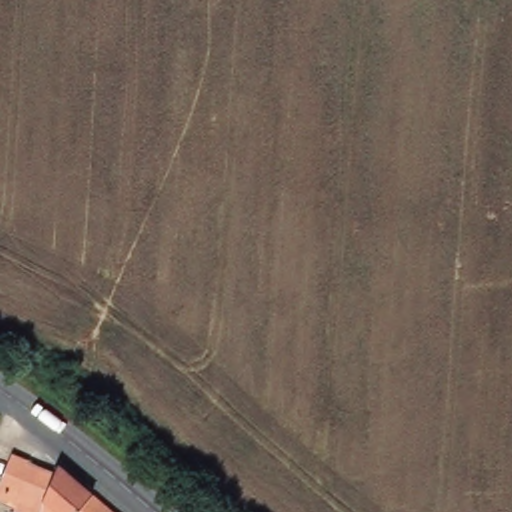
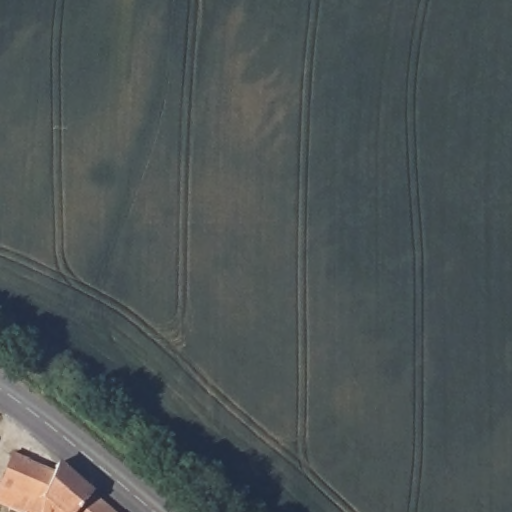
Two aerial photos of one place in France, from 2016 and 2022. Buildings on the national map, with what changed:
unchanged [(96,496),(79,512),(15,512),(0,505),(0,450),(53,472),(58,467),(96,496)]
unchanged [(115,512),(79,512),(96,496),(115,512)]

